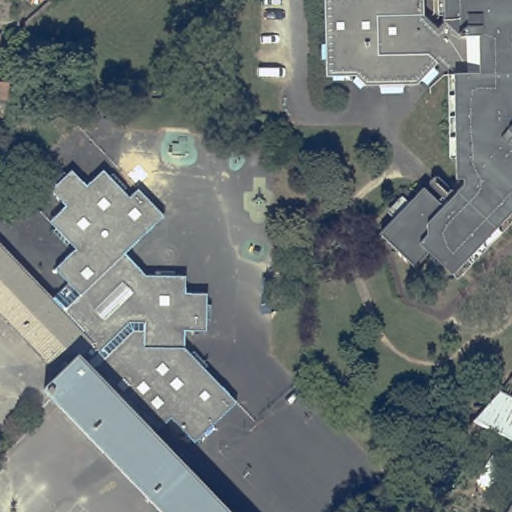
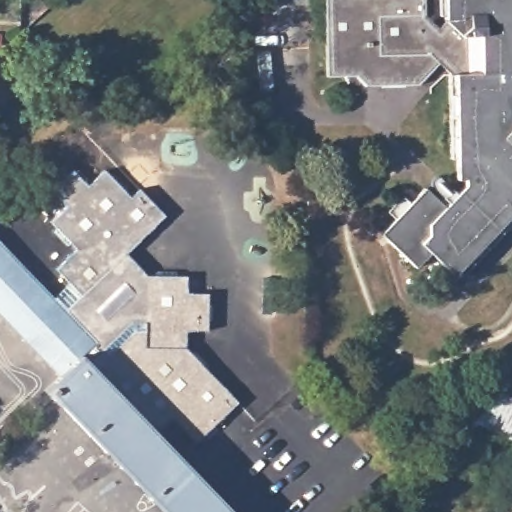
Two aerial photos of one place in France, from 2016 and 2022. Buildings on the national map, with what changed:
unchanged [(418,84),(366,85),(358,75),(327,76),(326,0),(425,0),(426,13),(380,14),(380,53),(430,52),(439,60),(418,84)]
unchanged [(440,261),(428,250),(414,265),(379,232),(424,185),(444,204),(466,182),(465,177),(457,177),(457,164),(457,157),(451,158),(450,120),(450,103),(450,71),(439,60),(430,52),(380,53),(380,14),(426,13),(440,26),(447,18),(446,0),(512,0),(512,211),(453,273),(440,261)]
unchanged [(11,78),(10,82),(10,94),(9,94),(0,94),(0,78),(11,78)]
unchanged [(0,191),(0,146),(7,147),(5,191),(0,191)]
unchanged [(69,283),(55,269),(76,249),(52,222),(68,206),(52,189),(73,170),(88,186),(106,171),(112,176),(114,174),(126,189),(124,191),(131,197),(139,190),(164,216),(127,252),(150,276),(157,275),(158,271),(177,272),(176,276),(187,278),(187,292),(208,294),(208,306),(212,306),(211,321),(207,321),(206,332),(186,332),(186,348),(193,356),(195,352),(209,365),(205,369),(238,405),(209,431),(69,283)]
unchanged [(196,444),(173,420),(156,435),(229,512),(162,512),(46,390),(60,377),(0,314),(0,247),(51,300),(69,283),(209,431),(196,444)]
unchanged [(512,377),(512,381),(510,380),(512,377)]
unchanged [(503,387),(512,392),(512,438),(475,419),(503,387)]

